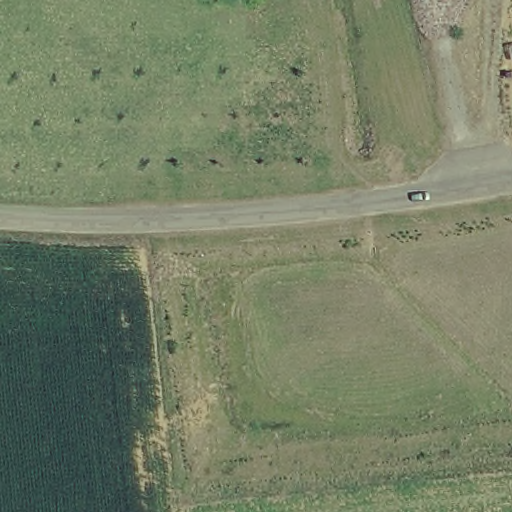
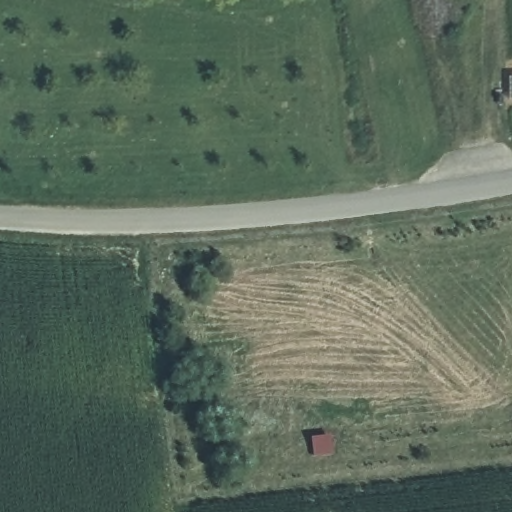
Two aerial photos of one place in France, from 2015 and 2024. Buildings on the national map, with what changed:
[]

